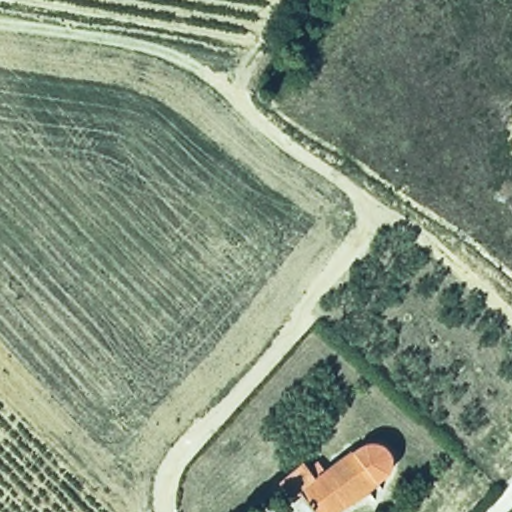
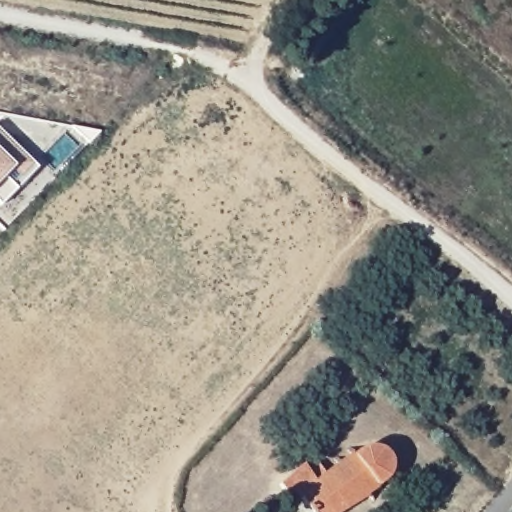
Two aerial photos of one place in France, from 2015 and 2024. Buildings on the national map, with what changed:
new [(30,163),(11,183),(15,187),(2,201),(0,204),(0,134),(30,163)]
unchanged [(292,505),(275,486),(300,466),(305,471),(315,463),(322,472),(358,449),(367,446),(375,447),(381,451),(387,458),(388,466),(387,475),(380,483),(339,512),(307,512),(298,501),(292,505)]

